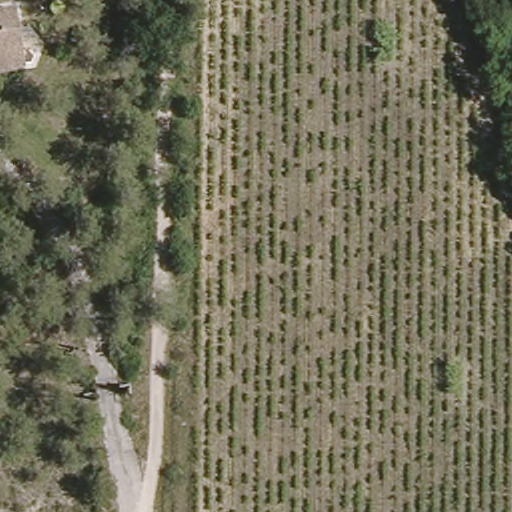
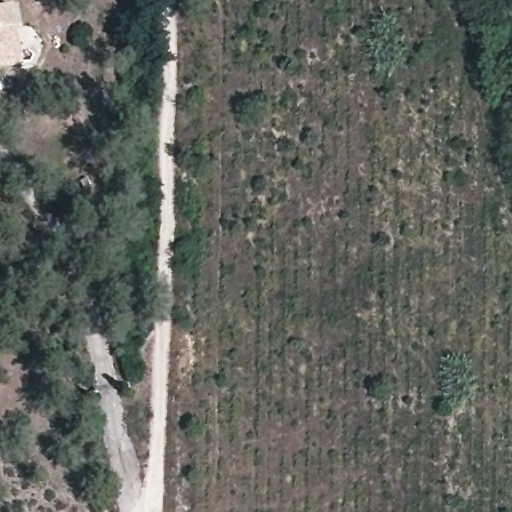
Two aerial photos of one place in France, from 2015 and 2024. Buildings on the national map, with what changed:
unchanged [(0,10),(9,9),(16,52),(18,62),(0,65),(0,10)]

